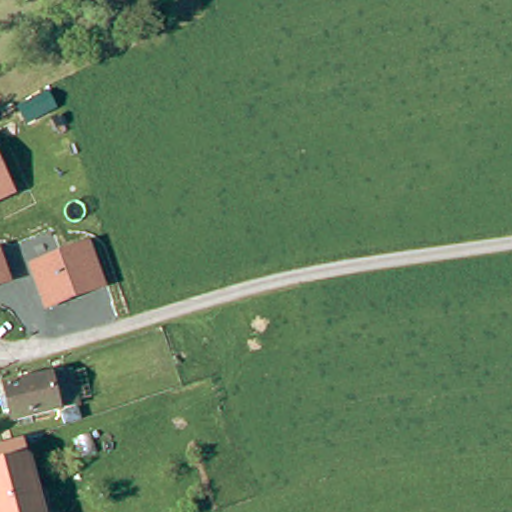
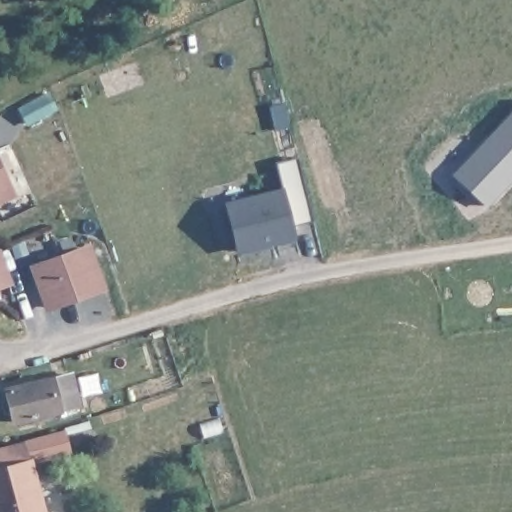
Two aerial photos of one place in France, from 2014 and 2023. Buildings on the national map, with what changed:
new [(512,110),(512,178),(487,205),(453,175),(512,110)]
new [(275,162),(299,156),(314,220),(293,223),(297,239),(237,252),(224,202),(282,187),(275,162)]
unchanged [(0,202),(0,157),(17,195),(0,202)]
unchanged [(92,241),(107,287),(46,311),(30,263),(92,241)]
unchanged [(12,284),(0,288),(0,248),(1,248),(12,284)]
unchanged [(10,404),(7,395),(68,379),(75,410),(16,425),(14,417),(6,419),(3,406),(10,404)]
unchanged [(124,465),(113,469),(107,449),(117,447),(124,465)]
unchanged [(0,457),(27,451),(41,512),(0,512),(0,457)]
demolished [(116,510),(116,512),(108,512),(116,510)]

